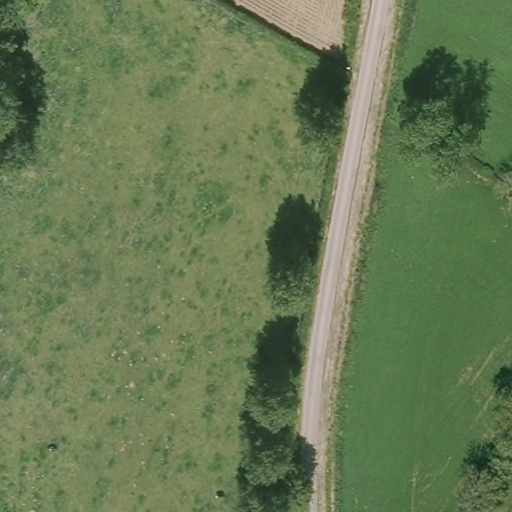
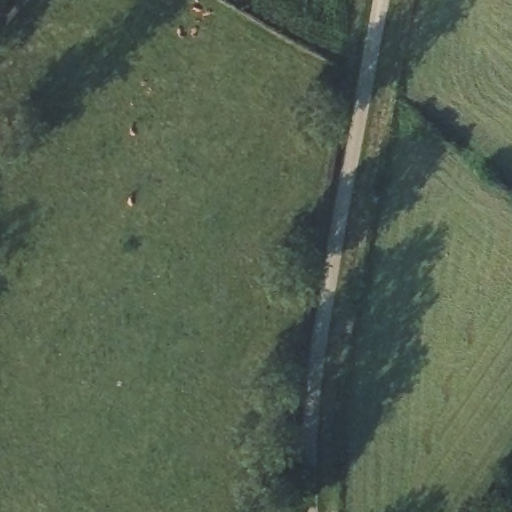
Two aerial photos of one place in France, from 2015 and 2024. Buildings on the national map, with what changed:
[]

